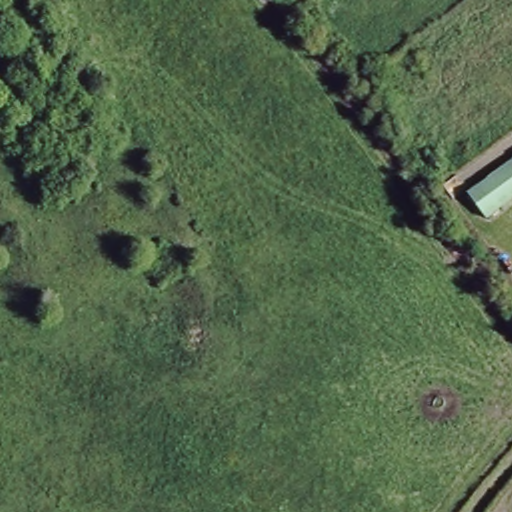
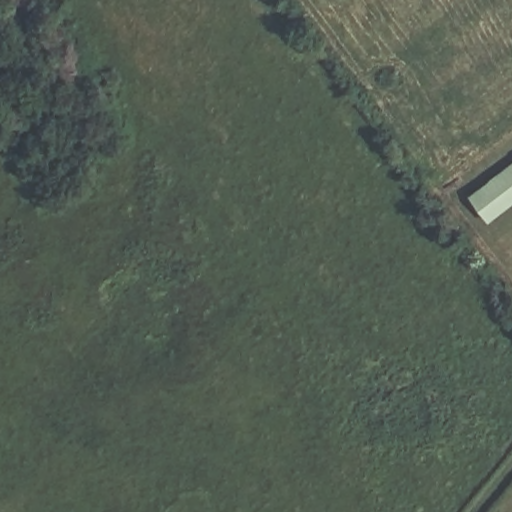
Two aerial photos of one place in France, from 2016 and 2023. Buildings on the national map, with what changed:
unchanged [(488,218),(478,206),(470,194),(512,162),(512,200),(488,218)]

